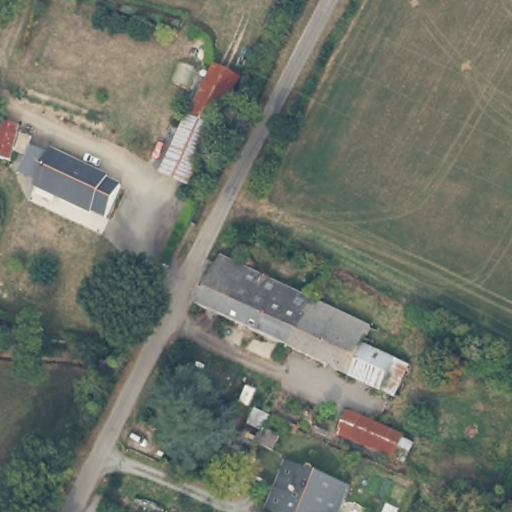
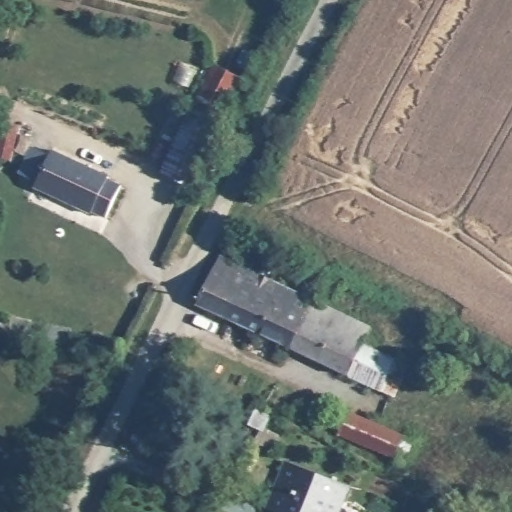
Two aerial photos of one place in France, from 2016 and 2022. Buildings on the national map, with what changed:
unchanged [(209,66),(239,80),(183,187),(156,177),(209,66)]
unchanged [(18,169),(29,144),(47,153),(49,147),(104,171),(103,175),(119,185),(104,213),(88,203),(84,209),(32,183),(35,177),(18,169)]
unchanged [(316,302),(292,353),(196,309),(221,258),(316,302)]
unchanged [(374,329),(365,346),(409,367),(394,399),(292,353),(316,302),(374,329)]
unchanged [(440,333),(435,330),(444,312),(449,316),(456,319),(448,338),(440,333)]
unchanged [(271,430),(257,424),(240,414),(247,402),(255,386),(258,388),(273,398),(265,410),(278,416),(271,430)]
unchanged [(354,445),(366,420),(401,435),(389,461),(354,445)]
unchanged [(339,512),(277,512),(264,507),(284,460),(349,487),(339,512)]

